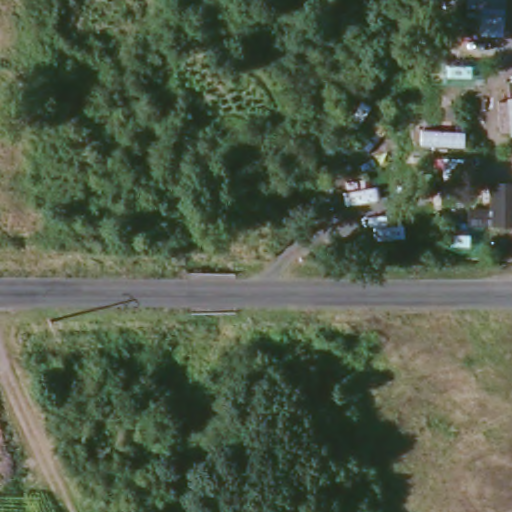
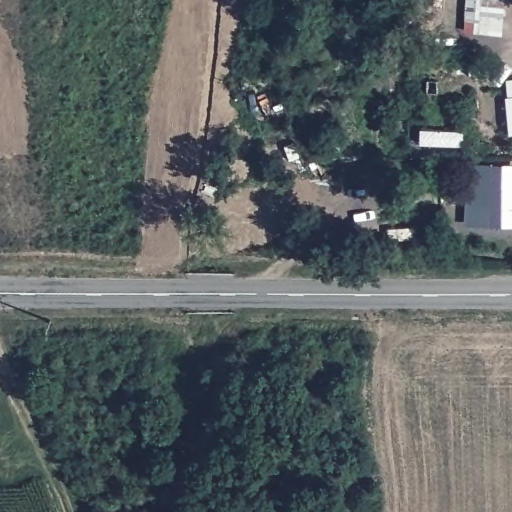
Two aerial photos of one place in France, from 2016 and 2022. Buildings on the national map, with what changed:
unchanged [(503,78),(512,77),(512,131),(507,132),(495,131),(495,98),(504,99),(503,78)]

